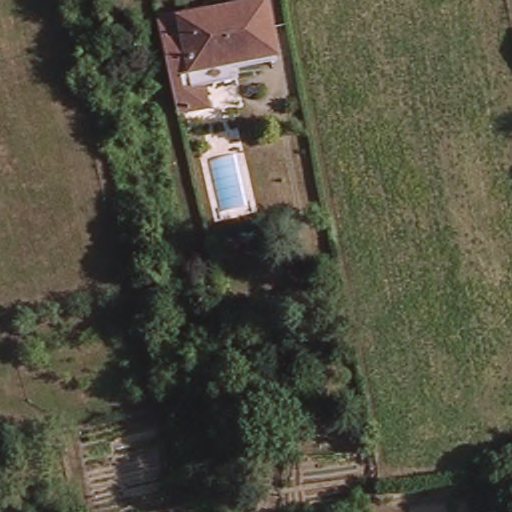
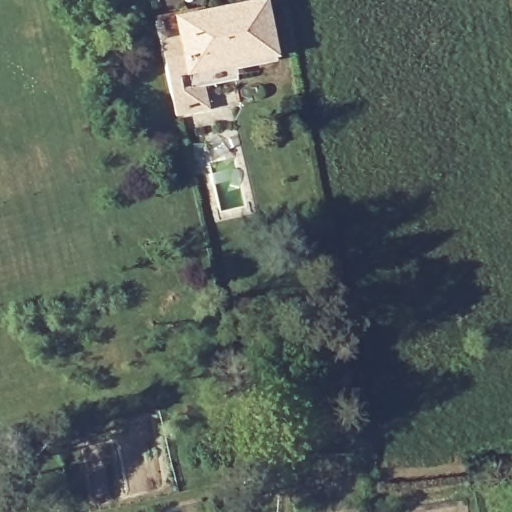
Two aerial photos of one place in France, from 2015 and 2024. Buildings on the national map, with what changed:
unchanged [(238,76),(205,81),(210,106),(180,113),(160,23),(263,0),(265,0),(277,53),(278,60),(237,70),(238,76)]
unchanged [(260,422),(273,407),(282,415),(269,430),(260,422)]

